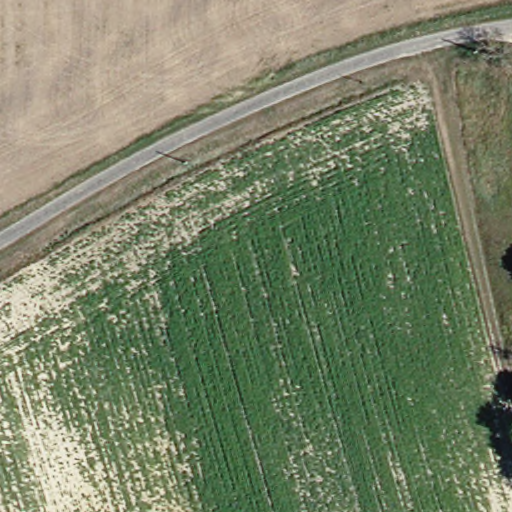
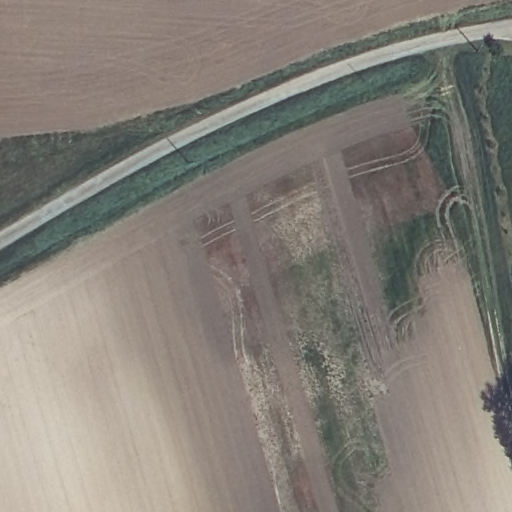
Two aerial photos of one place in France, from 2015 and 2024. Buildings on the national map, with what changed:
[]

